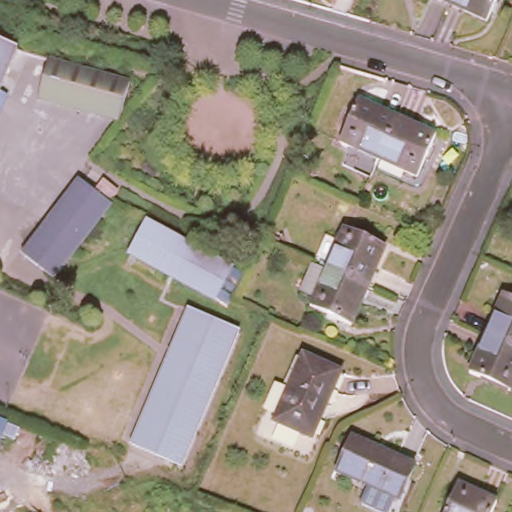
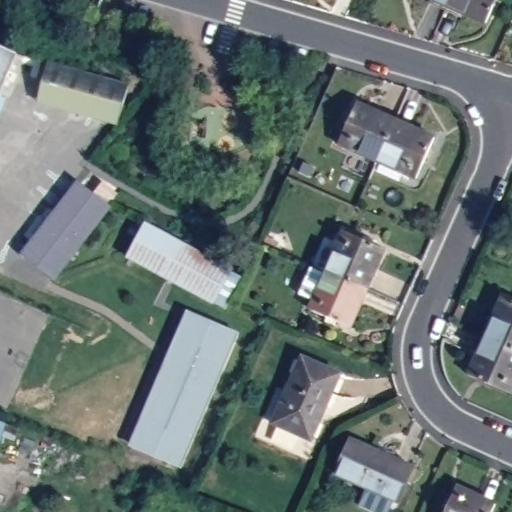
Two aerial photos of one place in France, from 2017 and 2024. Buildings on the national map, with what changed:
unchanged [(29,1),(26,11),(12,7),(14,0),(26,0),(29,1)]
unchanged [(434,0),(448,0),(446,6),(434,0)]
unchanged [(485,23),(446,6),(448,0),(495,0),(485,23)]
unchanged [(15,54),(0,90),(0,47),(15,54)]
unchanged [(129,82),(118,120),(36,96),(48,58),(129,82)]
unchanged [(338,144),(356,102),(394,119),(376,162),(338,144)]
unchanged [(434,137),(415,179),(376,162),(394,119),(434,137)]
unchanged [(112,209),(55,282),(20,254),(78,181),(112,209)]
unchanged [(231,264),(214,298),(128,254),(145,221),(231,264)]
unchanged [(344,231),(385,250),(369,290),(327,272),(344,231)]
unchanged [(353,329),(311,310),(314,300),(299,295),(311,268),(326,274),(327,272),(369,290),(353,329)]
unchanged [(512,299),(512,346),(481,333),(499,293),(512,299)]
unchanged [(240,332),(183,468),(131,446),(188,309),(240,332)]
unchanged [(504,390),(464,372),(481,333),(512,346),(512,379),(509,378),(504,390)]
unchanged [(341,369),(312,435),(274,418),(303,352),(341,369)]
unchanged [(6,424),(0,441),(0,422),(6,424)]
unchanged [(414,463),(399,496),(336,468),(351,434),(414,463)]
unchanged [(490,512),(444,512),(458,482),(496,500),(490,512)]

